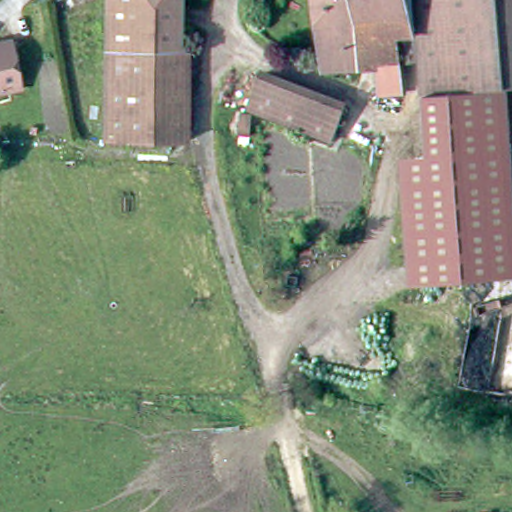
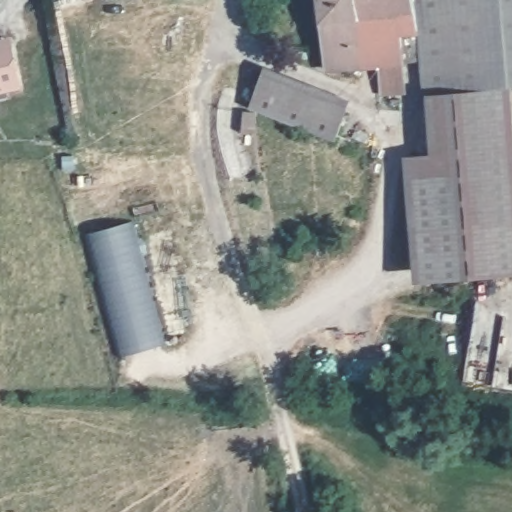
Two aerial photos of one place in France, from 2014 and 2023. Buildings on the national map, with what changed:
demolished [(103,0),(187,0),(185,140),(101,139),(103,0)]
unchanged [(412,59),(402,60),(405,89),(380,91),(378,62),(326,66),(324,43),(319,0),(414,0),(420,57),(412,59)]
unchanged [(422,91),(420,57),(414,0),(512,0),(512,83),(510,84),(422,91)]
unchanged [(0,92),(0,42),(10,40),(11,42),(20,87),(0,92)]
unchanged [(254,107),(266,73),(351,107),(340,141),(254,107)]
unchanged [(512,103),(512,274),(411,283),(403,154),(425,152),(422,91),(510,84),(512,103)]
unchanged [(259,112),(257,134),(246,133),(247,112),(259,112)]
new [(167,342),(120,356),(86,235),(133,221),(167,342)]

